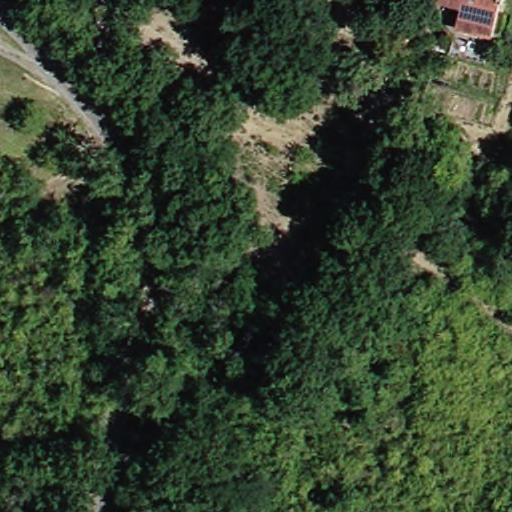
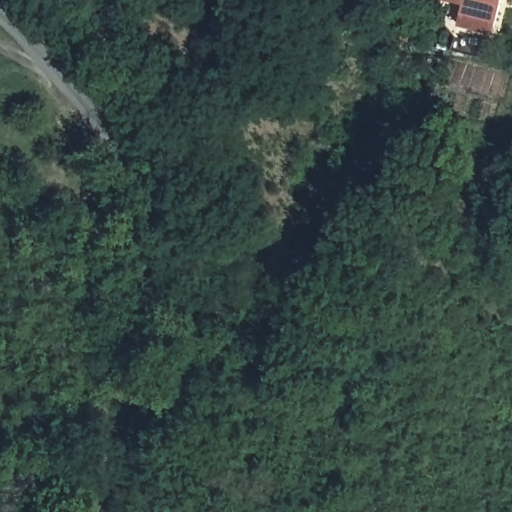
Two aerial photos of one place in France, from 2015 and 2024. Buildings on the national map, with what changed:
unchanged [(498,32),(465,21),(470,5),(456,0),(508,0),(498,32)]

